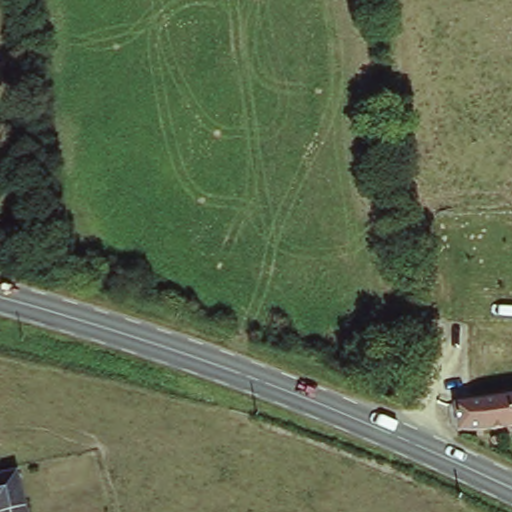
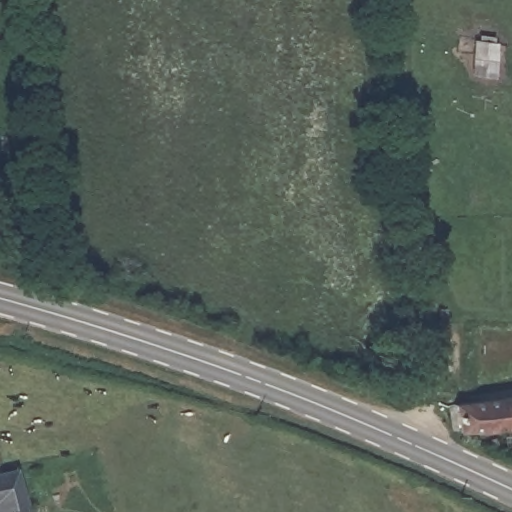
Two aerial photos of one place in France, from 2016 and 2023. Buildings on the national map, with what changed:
unchanged [(512,400),(512,431),(505,432),(457,432),(452,408),(512,400)]
unchanged [(23,512),(0,512),(0,475),(13,472),(23,512)]

